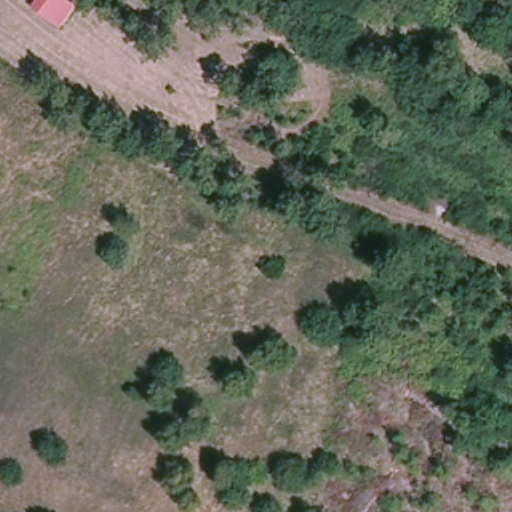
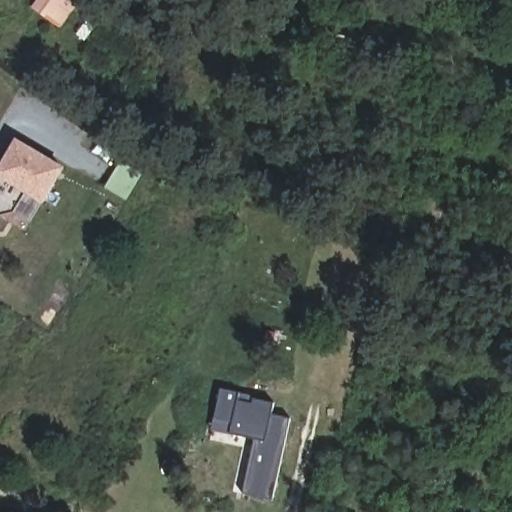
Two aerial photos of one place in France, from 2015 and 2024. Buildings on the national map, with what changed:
unchanged [(30,4),(32,0),(72,0),(79,5),(61,27),(30,4)]
new [(0,212),(0,176),(22,140),(67,167),(48,200),(31,190),(19,210),(14,220),(4,215),(0,212)]
new [(123,161),(145,174),(130,200),(107,186),(123,161)]
new [(289,422),(273,500),(243,493),(255,438),(213,430),(222,390),(239,393),(237,400),(250,402),(251,398),(275,403),(271,418),(289,422)]

